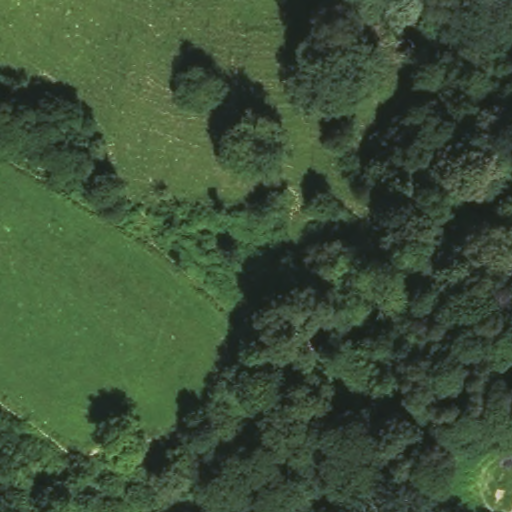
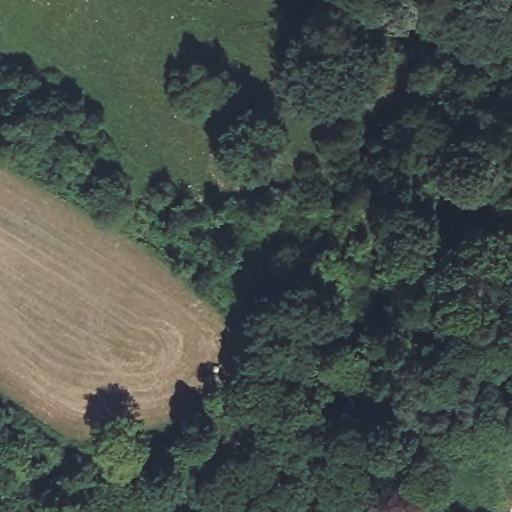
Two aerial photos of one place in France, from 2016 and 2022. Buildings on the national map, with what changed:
unchanged [(313,253),(358,282),(340,305),(294,277),(313,253)]

